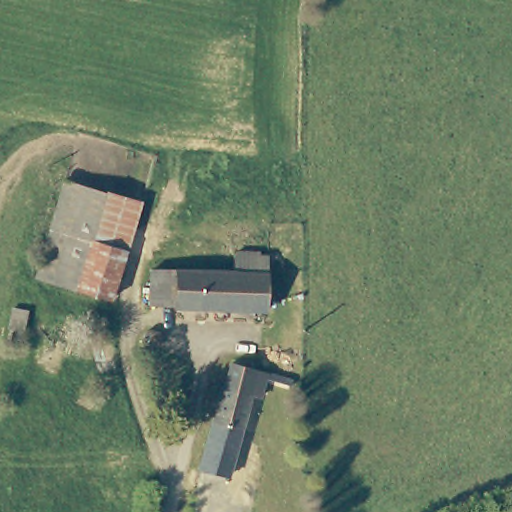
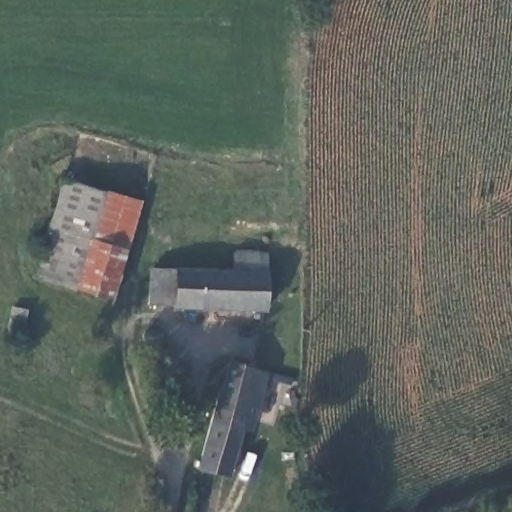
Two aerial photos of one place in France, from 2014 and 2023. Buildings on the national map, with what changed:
unchanged [(108,300),(32,275),(61,179),(137,203),(108,300)]
unchanged [(262,307),(172,303),(173,301),(147,300),(149,265),(232,268),(232,249),(266,250),(262,307)]
unchanged [(20,330),(7,327),(11,307),(22,308),(21,320),(20,330)]
unchanged [(256,400),(247,398),(241,434),(210,427),(218,390),(222,390),(227,366),(254,372),(262,375),(256,400)]
unchanged [(241,434),(230,478),(200,472),(210,427),(241,434)]

